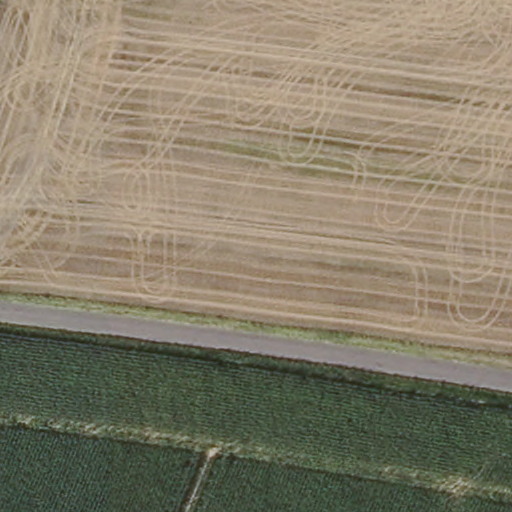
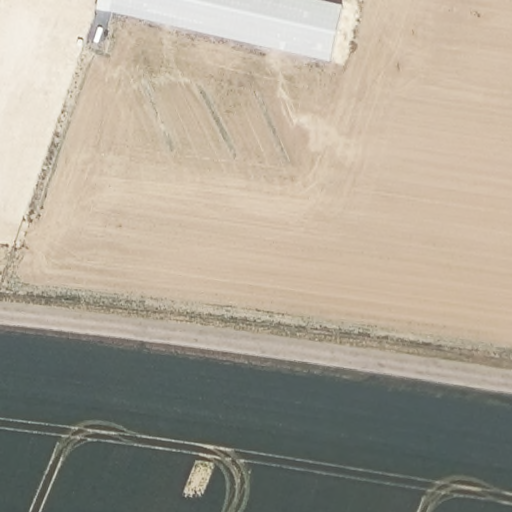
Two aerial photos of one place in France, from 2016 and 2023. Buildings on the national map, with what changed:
new [(99,7),(101,0),(336,0),(347,3),(333,59),(99,7)]

